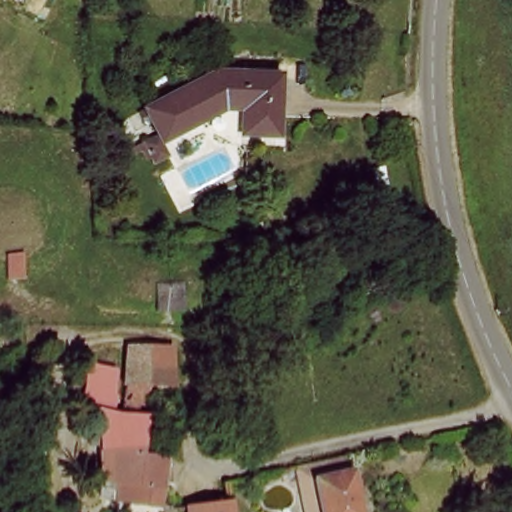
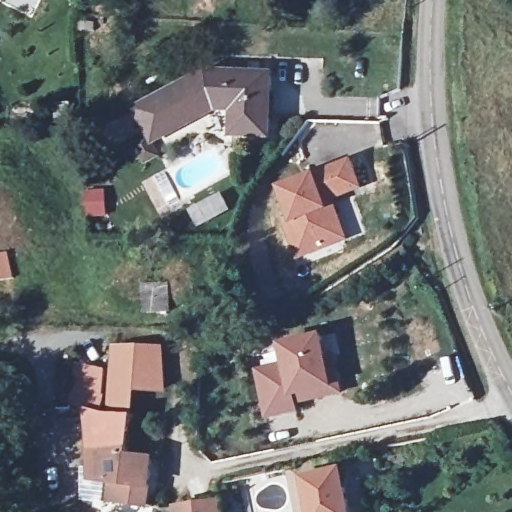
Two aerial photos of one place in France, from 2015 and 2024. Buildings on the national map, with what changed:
unchanged [(0,0),(36,0),(27,19),(0,6),(0,0)]
unchanged [(202,70),(267,74),(267,137),(229,136),(229,112),(209,110),(201,103),(166,125),(167,132),(148,142),(131,107),(202,70)]
new [(292,222),(280,189),(319,174),(353,158),(367,192),(339,204),(352,242),(300,262),(285,224),(292,222)]
unchanged [(206,254),(190,241),(199,225),(217,234),(214,240),(206,254)]
new [(296,402),(298,409),(269,418),(254,371),(282,362),(277,346),(315,333),(322,354),(329,352),(339,380),(341,388),(316,395),(296,402)]
unchanged [(113,412),(113,387),(114,366),(115,347),(157,342),(161,354),(161,368),(156,368),(156,391),(154,427),(132,425),(114,423),(113,412)]
unchanged [(148,461),(151,461),(149,507),(96,504),(87,409),(68,407),(70,385),(101,390),(98,411),(110,412),(113,412),(114,423),(132,425),(133,459),(148,461)]
unchanged [(345,462),(353,512),(306,512),(296,473),(345,462)]
unchanged [(180,509),(218,503),(219,505),(220,512),(180,512),(180,509)]

